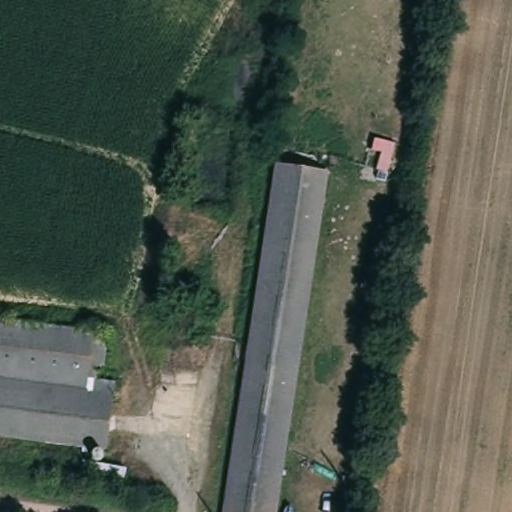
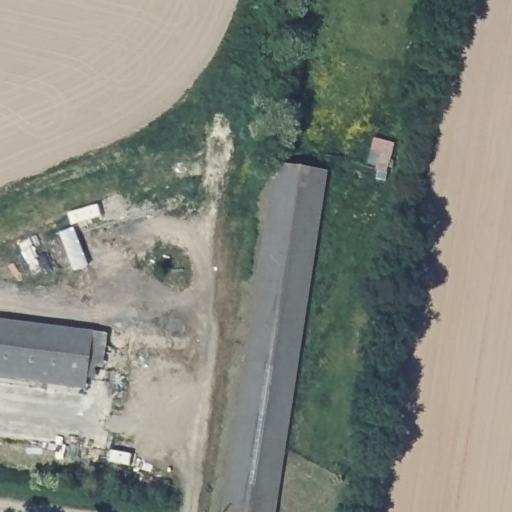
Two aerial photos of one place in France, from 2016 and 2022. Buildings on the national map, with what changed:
unchanged [(328,158),(282,512),(228,512),(265,208),(274,150),(328,158)]
unchanged [(103,372),(116,374),(108,449),(0,438),(0,320),(109,334),(103,372)]

